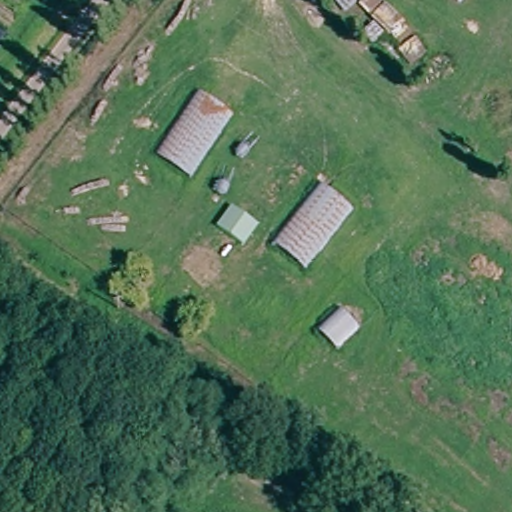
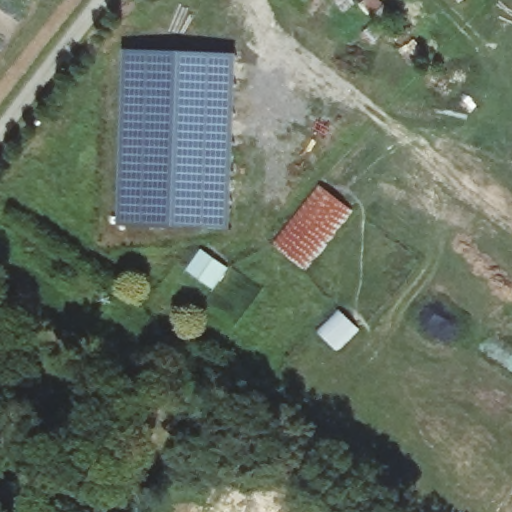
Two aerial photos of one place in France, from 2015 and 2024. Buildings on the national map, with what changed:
new [(232,230),(121,224),(125,51),(240,54),(232,230)]
demolished [(189,180),(153,157),(197,96),(232,116),(189,180)]
unchanged [(306,273),(271,245),(320,186),(352,209),(306,273)]

